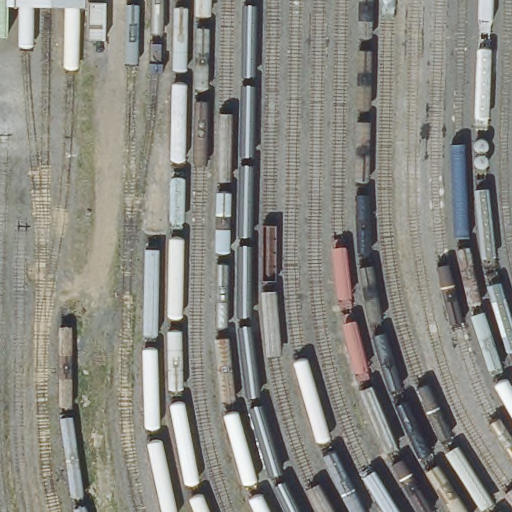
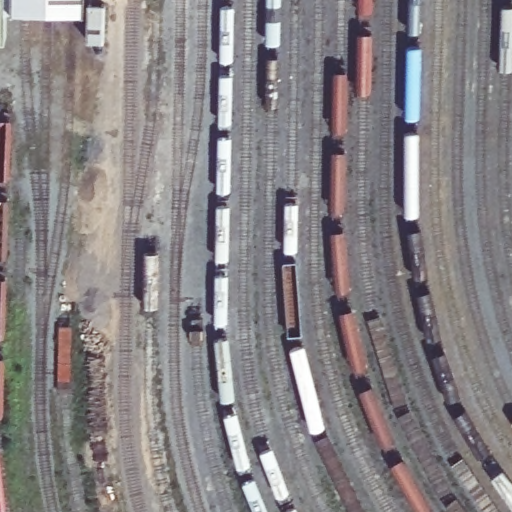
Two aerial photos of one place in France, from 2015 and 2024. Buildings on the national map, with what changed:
unchanged [(8,45),(0,45),(0,0),(8,0),(7,16),(8,45)]
unchanged [(83,0),(83,16),(7,16),(8,0),(83,0)]

